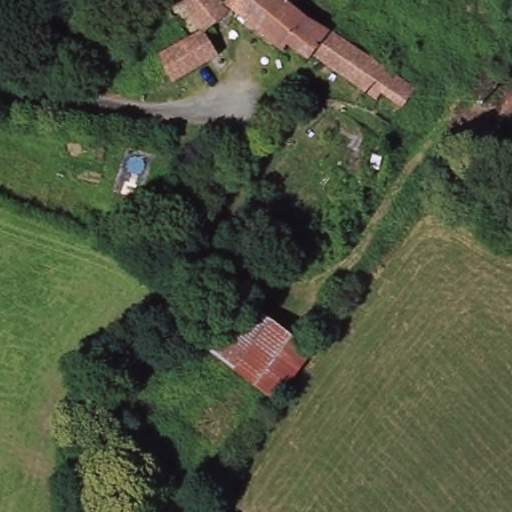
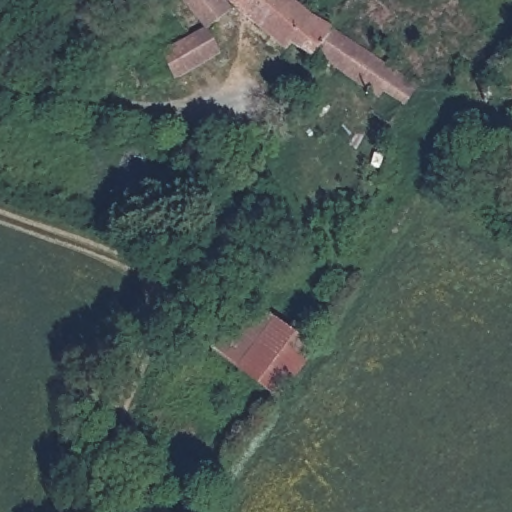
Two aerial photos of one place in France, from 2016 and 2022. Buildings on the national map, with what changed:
unchanged [(228,13),(206,36),(200,31),(176,0),(219,0),(223,6),(228,13)]
unchanged [(383,94),(376,98),(344,77),(344,74),(315,57),(309,61),(293,48),(288,51),(225,2),(228,0),(297,0),(294,7),(324,29),(358,52),(359,50),(369,56),(376,46),(377,45),(391,57),(387,68),(417,87),(402,108),(383,94)]
unchanged [(206,36),(217,56),(178,86),(158,60),(200,31),(206,36)]
unchanged [(282,403),(275,400),(217,358),(252,307),(311,348),(317,352),(282,403)]
unchanged [(200,323),(214,333),(190,375),(174,366),(200,323)]

